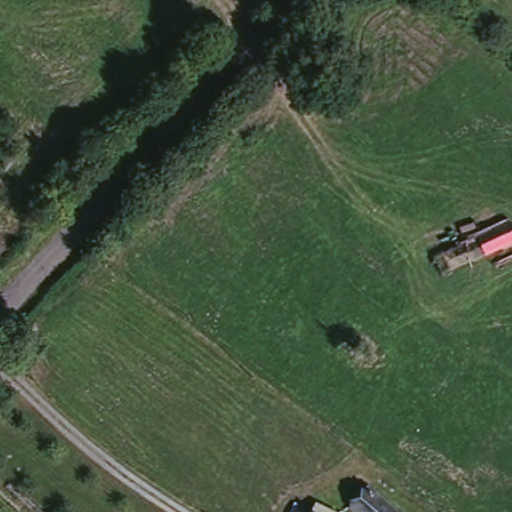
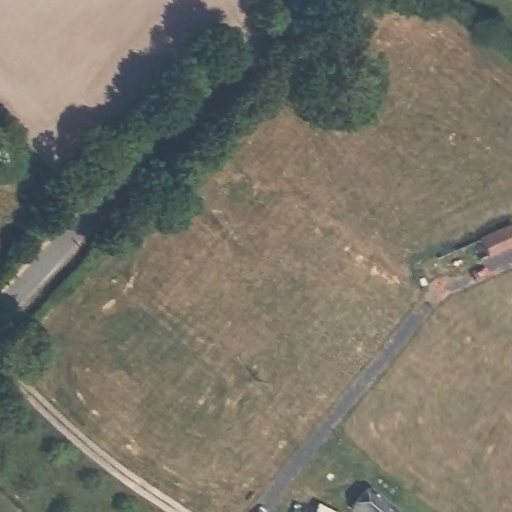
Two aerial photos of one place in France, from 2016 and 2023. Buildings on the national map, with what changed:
unchanged [(509,230),(512,239),(512,252),(438,279),(431,259),(509,230)]
unchanged [(372,496),(389,512),(359,512),(372,496)]
unchanged [(308,509),(313,512),(307,512),(308,509)]

